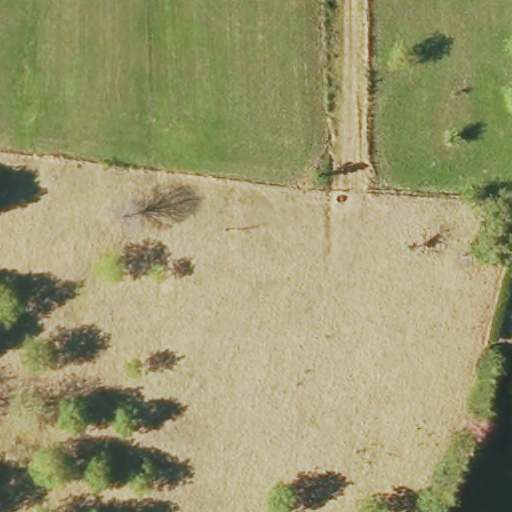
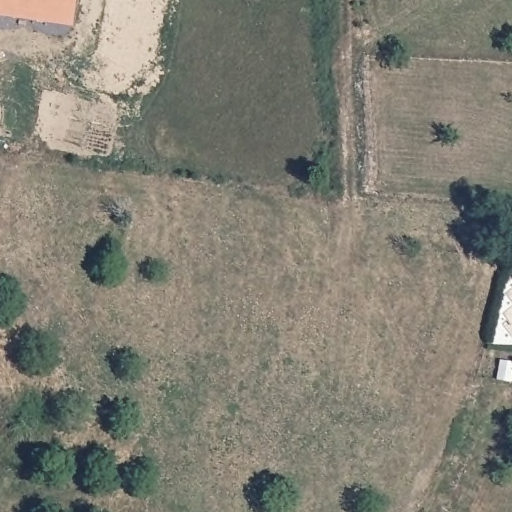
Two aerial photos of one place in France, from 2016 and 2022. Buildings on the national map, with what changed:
new [(75,0),(72,24),(0,13),(0,0),(75,0)]

